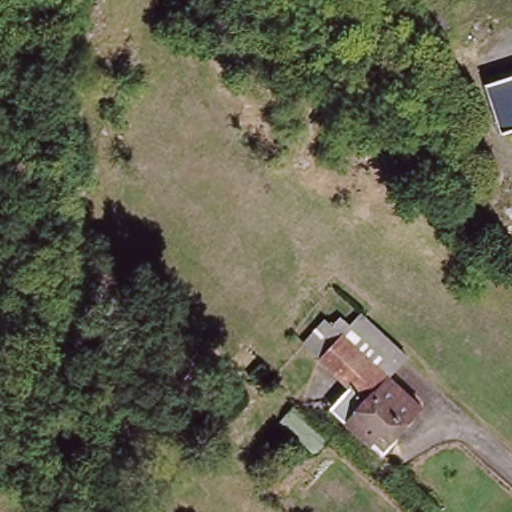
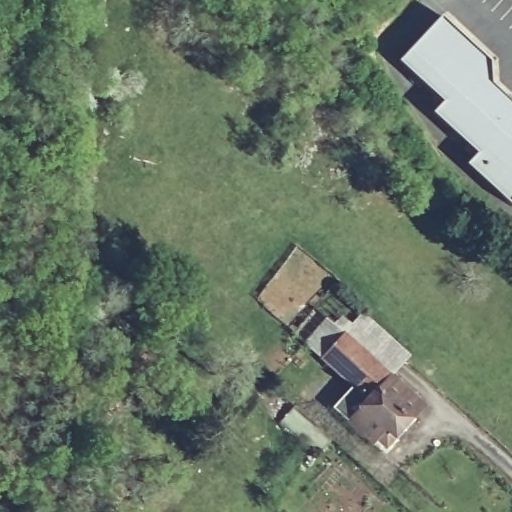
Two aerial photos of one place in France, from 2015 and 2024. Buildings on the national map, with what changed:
new [(489,61),(491,83),(512,103),(512,206),(466,166),(475,154),(433,115),(443,103),(399,61),(441,17),(489,61)]
demolished [(512,75),(512,130),(500,134),(485,84),(512,75)]
unchanged [(420,405),(380,448),(332,405),(348,387),(305,349),(330,321),(345,334),(351,326),(359,317),(403,355),(396,363),(386,374),(420,405)]
unchanged [(122,352),(128,359),(114,377),(116,380),(107,390),(97,381),(122,352)]

